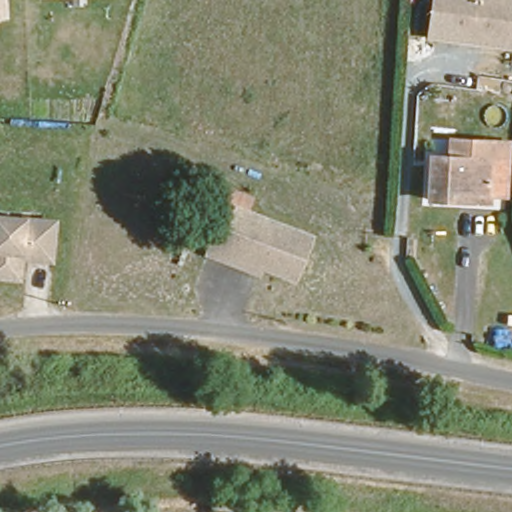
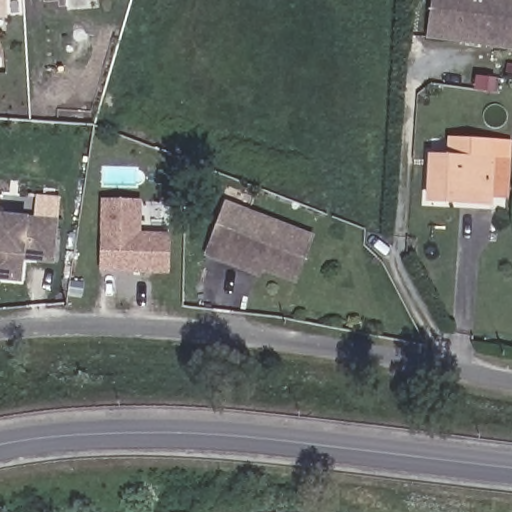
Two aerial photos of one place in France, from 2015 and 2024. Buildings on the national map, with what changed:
unchanged [(6,0),(8,19),(0,19),(0,0),(6,0)]
unchanged [(512,0),(512,49),(426,36),(431,0),(512,0)]
unchanged [(430,199),(432,151),(451,152),(451,136),(506,136),(507,151),(504,194),(486,192),(484,205),(449,201),(430,199)]
unchanged [(227,200),(315,233),(297,284),(264,271),(262,277),(204,255),(227,200)]
new [(102,270),(102,201),(136,201),(136,235),(165,235),(165,270),(102,270)]
unchanged [(56,263),(26,261),(25,282),(0,280),(0,213),(58,218),(56,263)]

